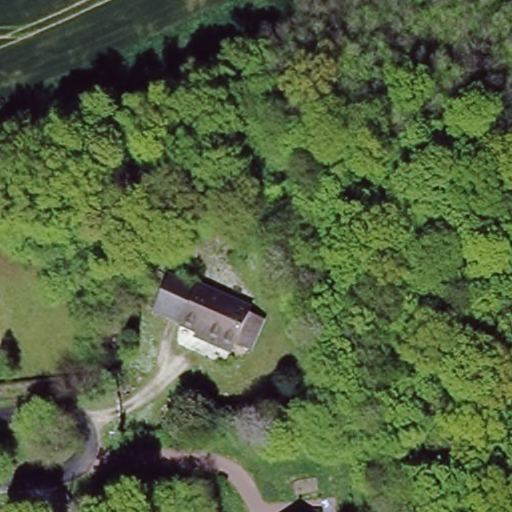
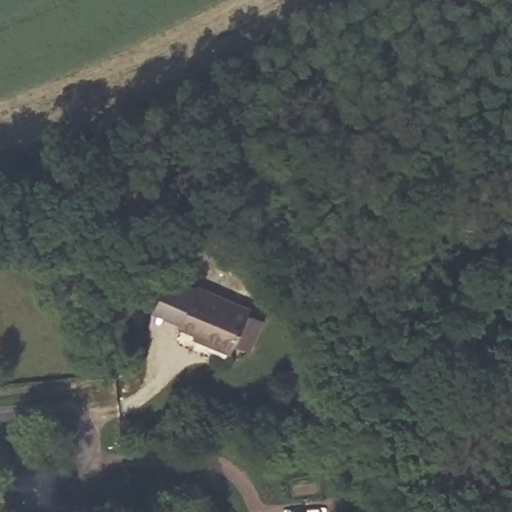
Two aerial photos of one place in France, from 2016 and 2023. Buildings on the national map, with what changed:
unchanged [(237,342),(211,331),(212,328),(200,323),(199,326),(183,319),(184,317),(158,306),(165,287),(170,274),(196,284),(198,280),(253,302),(237,342)]

